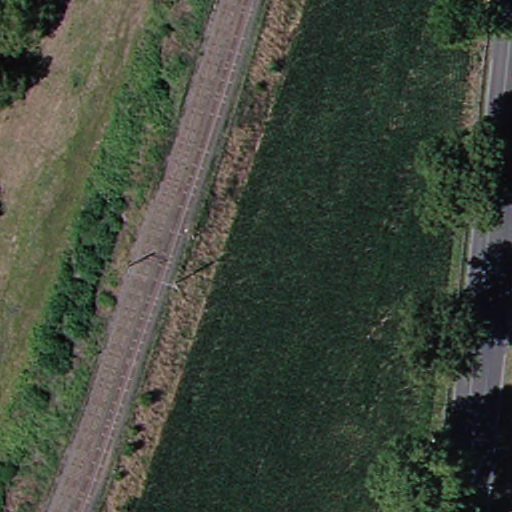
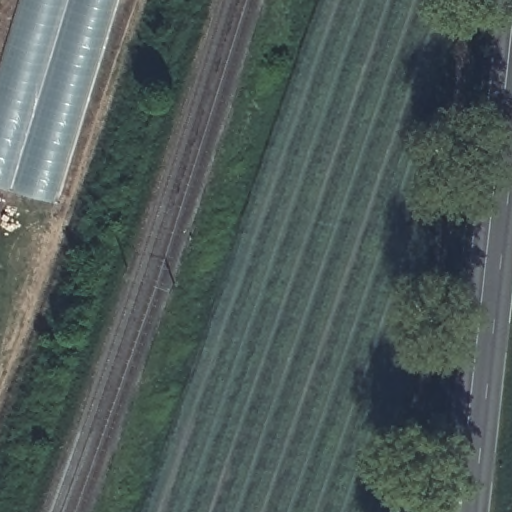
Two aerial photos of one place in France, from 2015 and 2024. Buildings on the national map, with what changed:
new [(0,186),(0,73),(22,0),(117,0),(55,203),(0,186)]

